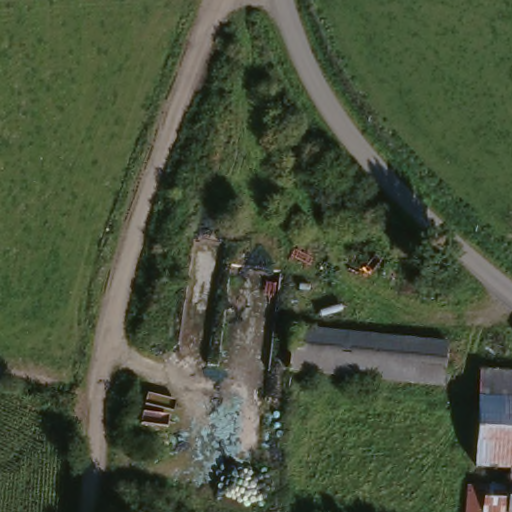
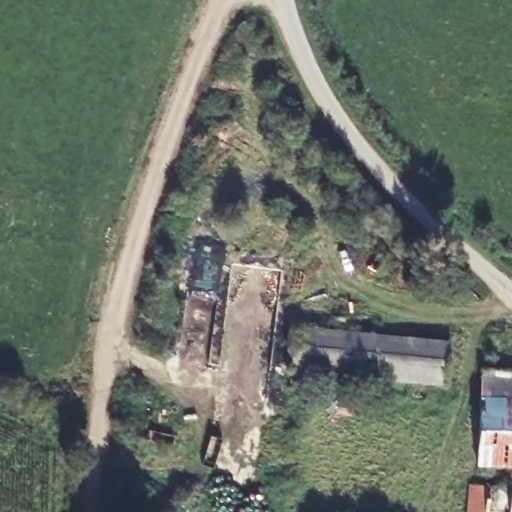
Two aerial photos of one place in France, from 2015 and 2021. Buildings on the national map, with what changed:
unchanged [(295,332),(448,345),(444,389),(292,374),(295,332)]
unchanged [(503,468),(472,466),(478,371),(512,374),(512,469),(503,468)]
unchanged [(512,469),(512,490),(504,490),(503,468),(512,469)]
unchanged [(504,490),(512,490),(512,512),(465,512),(466,488),(504,490)]

